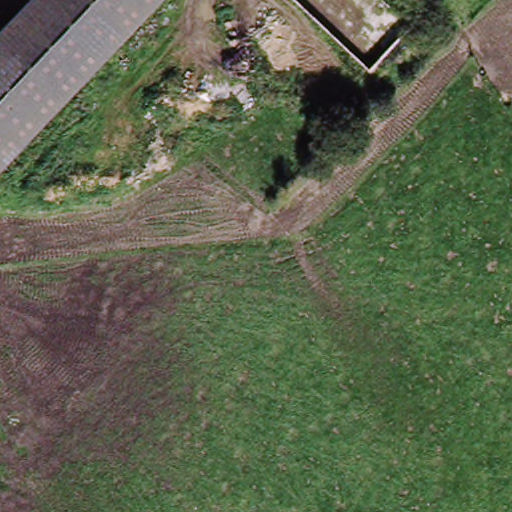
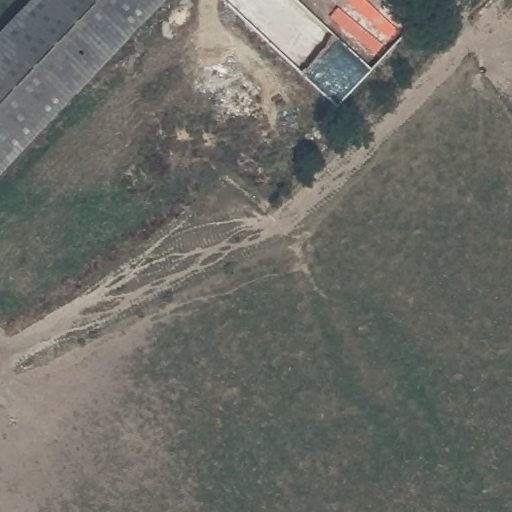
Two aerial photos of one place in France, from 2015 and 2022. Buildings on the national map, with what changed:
unchanged [(0,170),(0,34),(31,0),(157,0),(0,170)]

